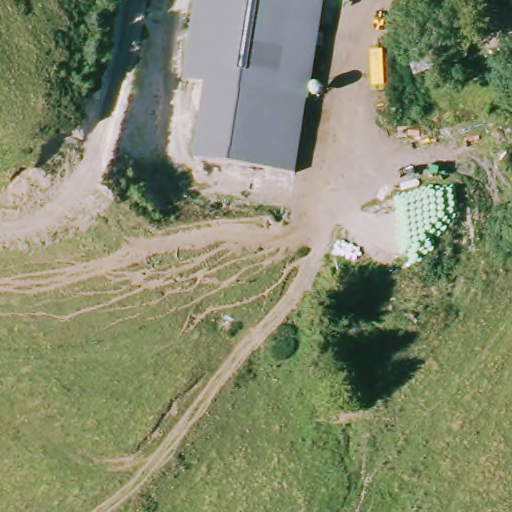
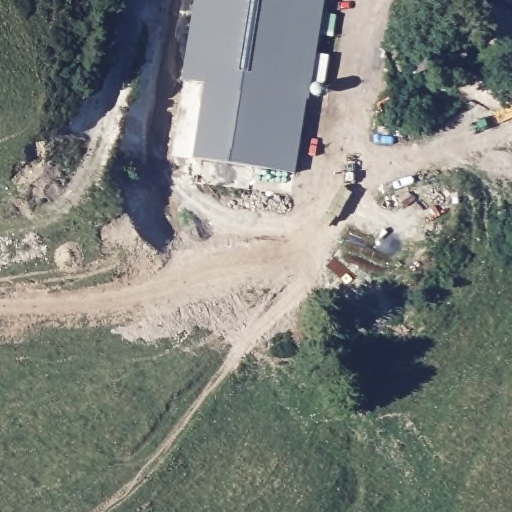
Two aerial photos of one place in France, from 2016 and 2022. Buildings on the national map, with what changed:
unchanged [(200,161),(209,86),(187,84),(197,0),(321,0),(302,172),(200,161)]
unchanged [(416,79),(411,53),(437,46),(432,18),(462,11),(466,37),(471,60),(416,79)]

